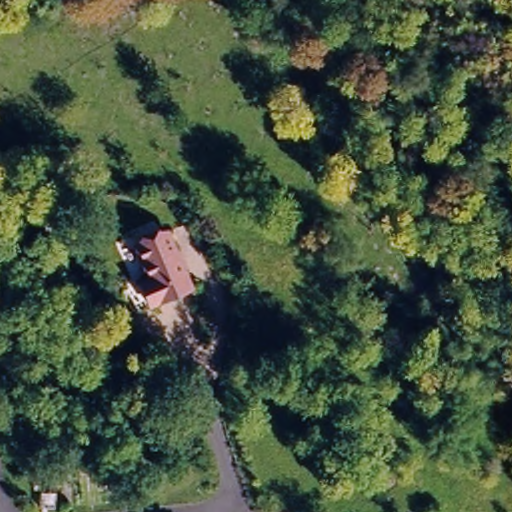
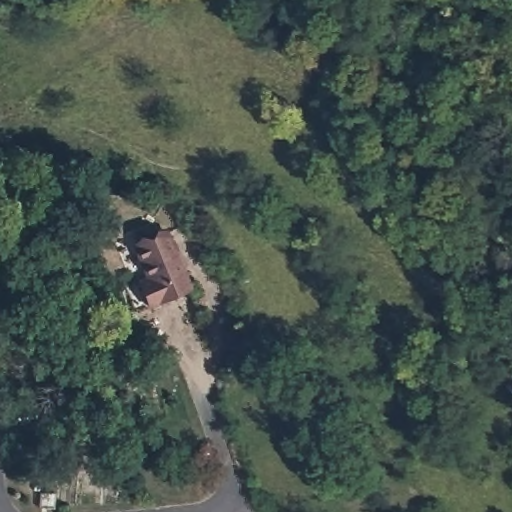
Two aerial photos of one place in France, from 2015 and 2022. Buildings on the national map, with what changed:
unchanged [(141,285),(150,280),(133,249),(165,233),(193,287),(152,308),(141,285)]

